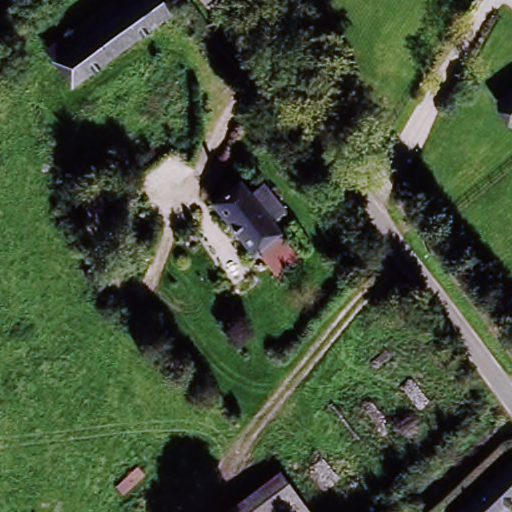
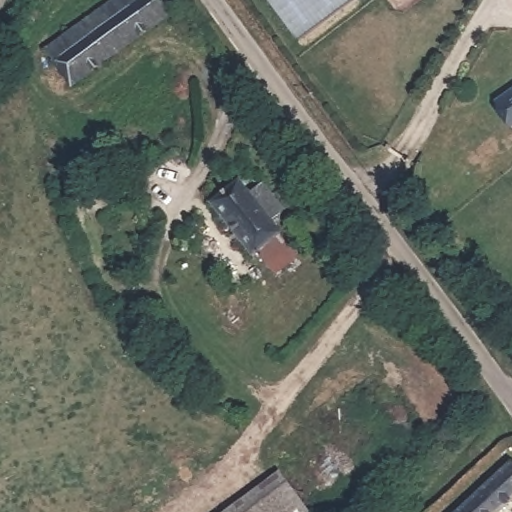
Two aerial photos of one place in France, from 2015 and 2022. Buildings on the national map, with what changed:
unchanged [(120,0),(145,0),(50,67),(42,55),(120,0)]
unchanged [(64,87),(50,67),(145,0),(156,0),(166,17),(64,87)]
new [(263,0),(359,0),(298,46),(263,0)]
unchanged [(502,108),(512,101),(512,123),(502,108)]
unchanged [(227,181),(269,234),(246,251),(205,198),(227,181)]
unchanged [(501,484),(495,477),(512,462),(512,504),(504,512),(471,512),(501,484)]
unchanged [(281,479),(304,512),(228,512),(281,479)]

